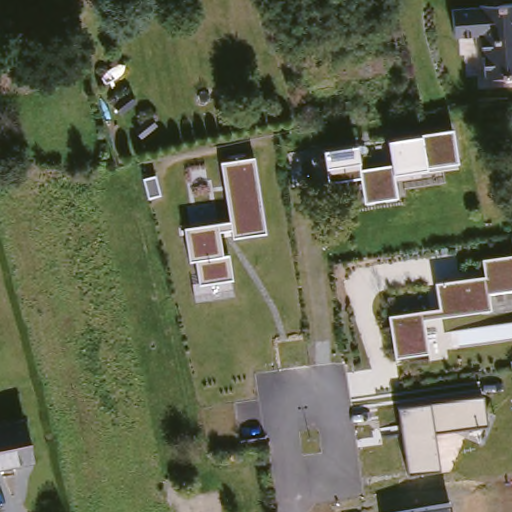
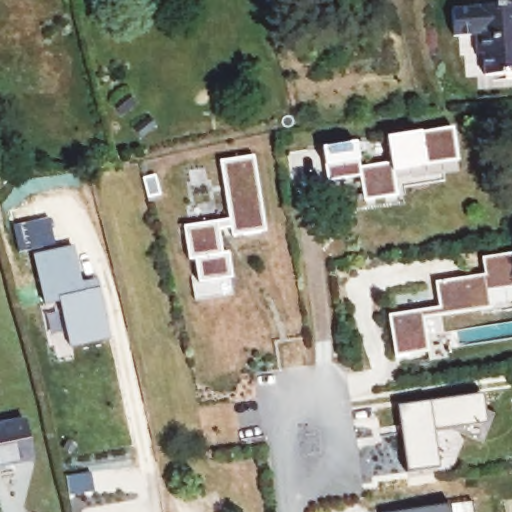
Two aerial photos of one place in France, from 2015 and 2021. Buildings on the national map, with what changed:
unchanged [(486,50),(480,50),(479,31),(457,32),(456,6),(483,4),(483,2),(512,0),(512,70),(487,72),(486,50)]
unchanged [(362,201),(358,177),(326,180),(323,162),(321,147),(355,142),(357,160),(359,168),(390,165),(386,137),(418,133),(450,130),(455,162),(421,166),(393,170),(397,198),(362,201)]
unchanged [(197,282),(194,260),(188,261),(182,227),(228,221),(219,162),(254,157),(265,232),(231,237),(230,229),(218,231),(221,254),(227,253),(230,278),(197,282)]
new [(43,303),(34,256),(74,248),(81,283),(96,281),(110,340),(70,348),(60,302),(43,303)]
unchanged [(438,308),(434,283),(482,277),(480,259),(512,255),(512,290),(486,293),(489,310),(421,318),(427,352),(394,357),(388,317),(438,308)]
unchanged [(495,415),(483,442),(451,429),(433,432),(438,467),(407,472),(396,408),(481,396),(483,407),(495,415)]
unchanged [(25,421),(33,460),(0,466),(0,426),(25,421)]
unchanged [(450,505),(452,512),(399,512),(450,505)]

